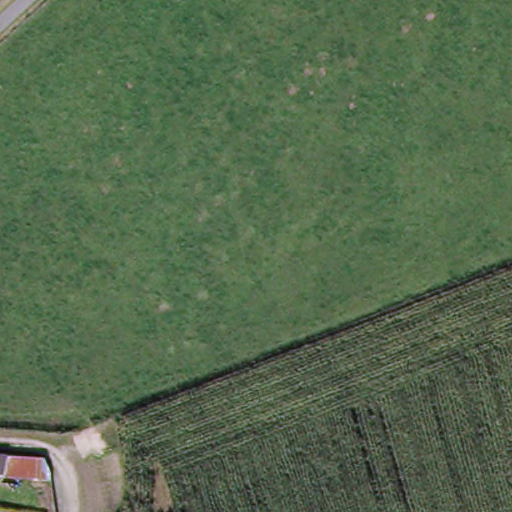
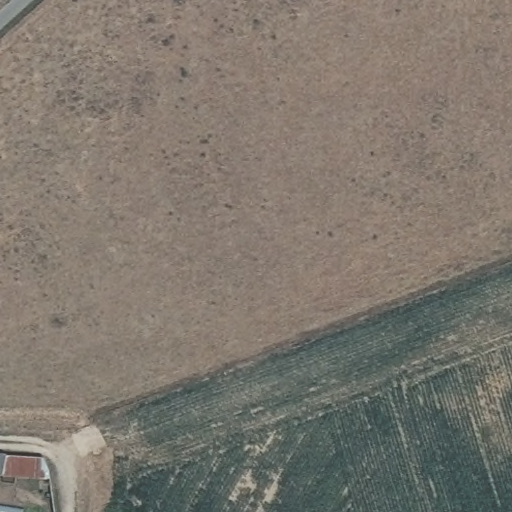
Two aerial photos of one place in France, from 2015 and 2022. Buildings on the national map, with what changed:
unchanged [(32,460),(40,460),(44,472),(45,480),(35,480),(0,477),(0,457),(18,458),(32,460)]

